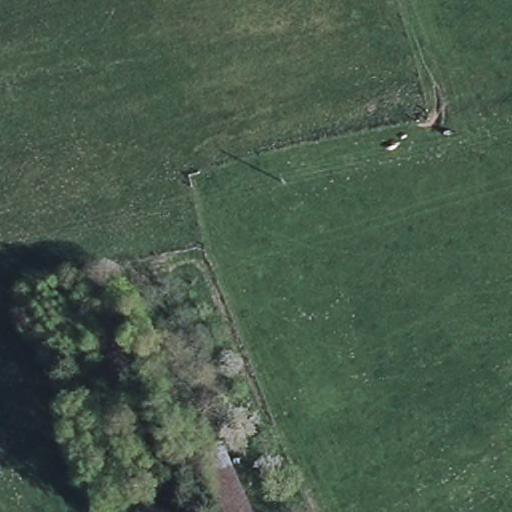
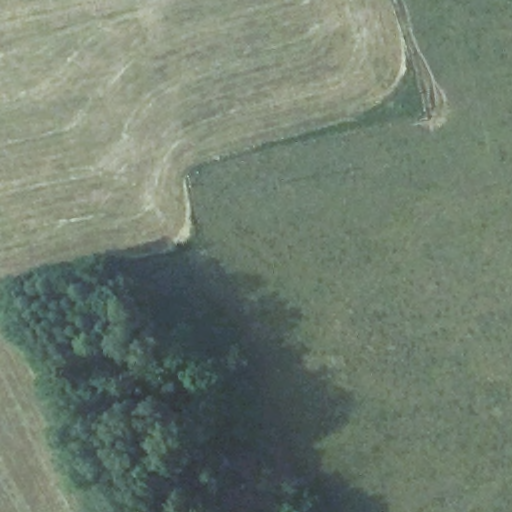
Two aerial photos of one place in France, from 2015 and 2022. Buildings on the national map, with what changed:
unchanged [(196,450),(223,439),(254,512),(222,512),(207,475),(196,450)]

